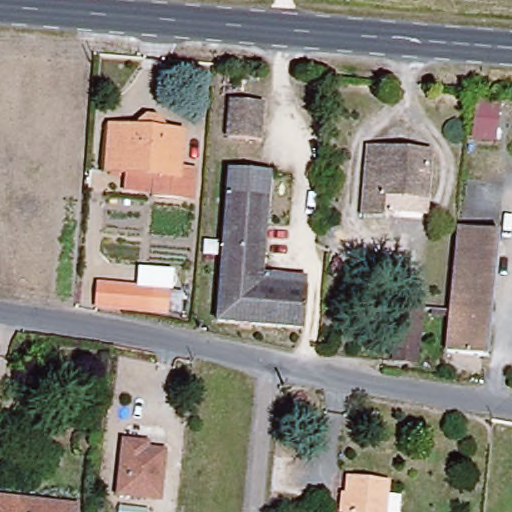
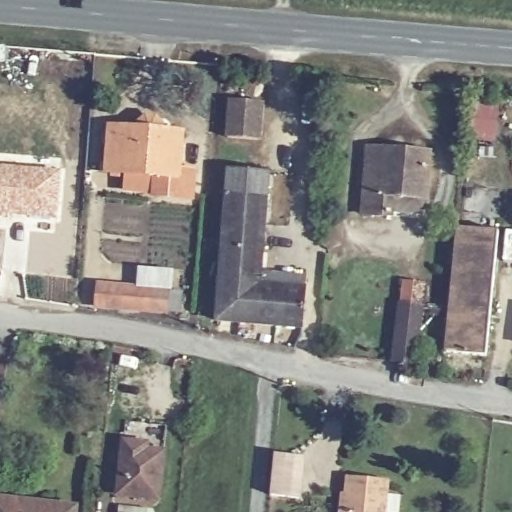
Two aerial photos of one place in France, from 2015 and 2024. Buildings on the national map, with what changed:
new [(229,99),(265,102),(262,141),(226,138),(229,99)]
unchanged [(104,174),(108,130),(135,133),(138,124),(150,116),(166,137),(180,138),(177,167),(196,170),(192,202),(148,197),(126,194),(128,177),(104,174)]
unchanged [(428,198),(384,194),(383,212),(365,211),(371,146),(432,151),(428,198)]
new [(64,167),(59,220),(0,214),(0,162),(64,167)]
unchanged [(263,279),(309,283),(305,329),(216,321),(229,168),(275,170),(263,279)]
unchanged [(447,352),(458,228),(498,231),(487,355),(447,352)]
unchanged [(156,287),(152,312),(85,302),(89,277),(156,287)]
unchanged [(424,312),(419,365),(398,363),(403,310),(424,312)]
unchanged [(141,448),(162,451),(156,499),(117,495),(124,439),(142,442),(141,448)]
new [(274,453),(303,456),(299,497),(270,494),(274,453)]
unchanged [(388,480),(383,512),(344,512),(349,474),(388,480)]
unchanged [(76,506),(76,512),(0,512),(0,496),(76,506)]

